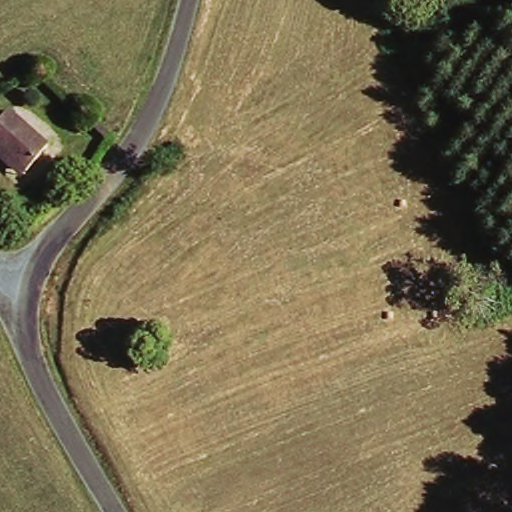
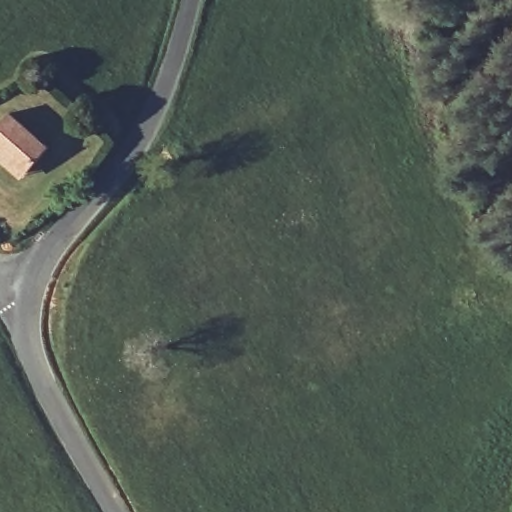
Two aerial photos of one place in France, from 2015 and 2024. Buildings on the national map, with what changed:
unchanged [(0,151),(0,119),(6,113),(44,151),(22,172),(16,179),(0,162),(0,151)]

